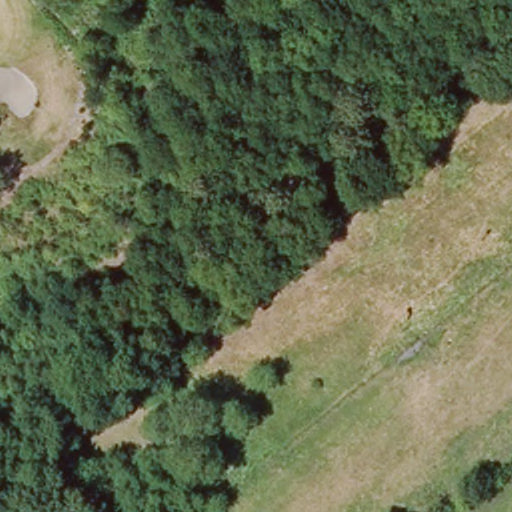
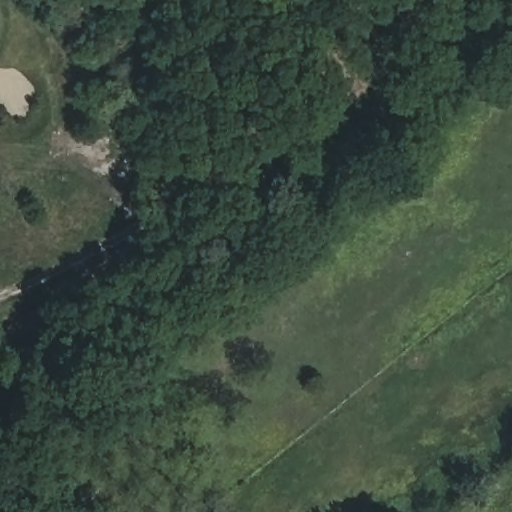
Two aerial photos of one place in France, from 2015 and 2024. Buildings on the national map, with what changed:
[]

